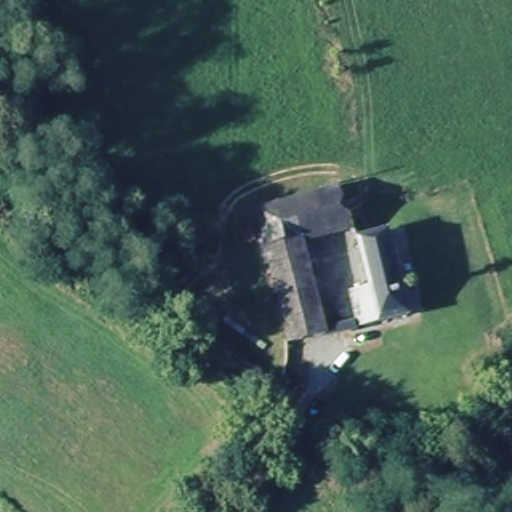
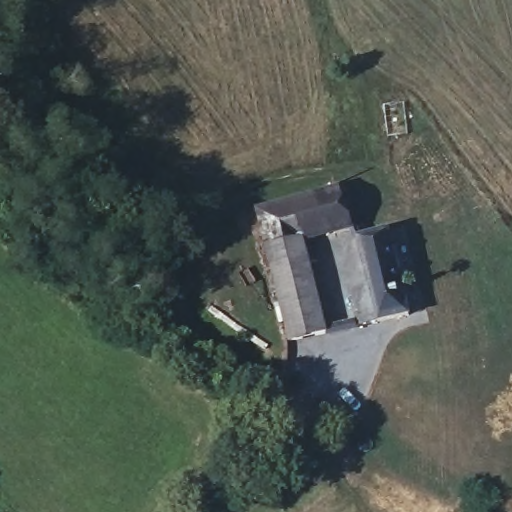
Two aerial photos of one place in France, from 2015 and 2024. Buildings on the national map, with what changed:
unchanged [(342,185),(355,232),(306,245),(328,333),(288,343),(253,207),(342,185)]
unchanged [(370,292),(355,232),(384,225),(397,281),(407,316),(356,327),(348,298),(370,292)]

